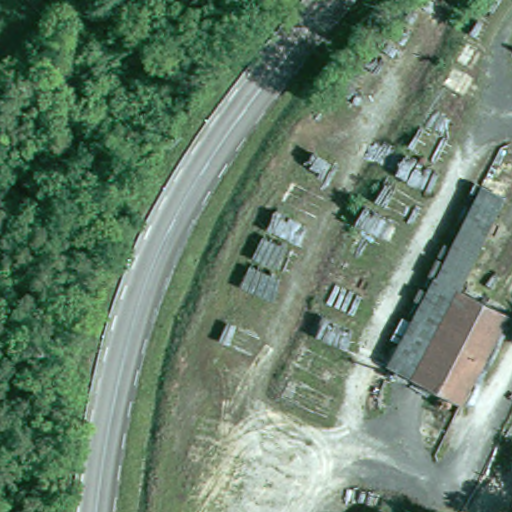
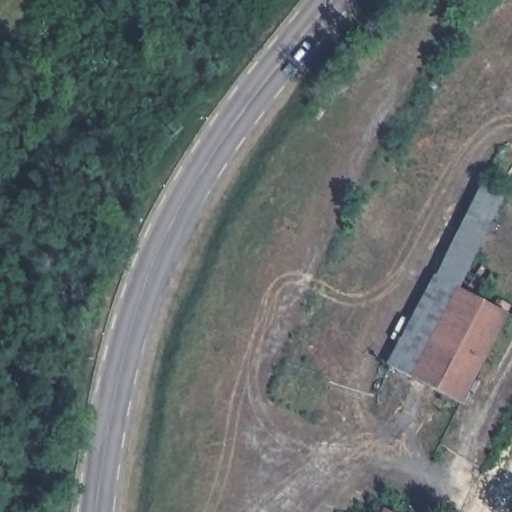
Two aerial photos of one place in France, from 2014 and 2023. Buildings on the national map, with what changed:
unchanged [(511,198),(459,292),(512,316),(512,322),(463,402),(388,363),(488,185),(511,198)]

